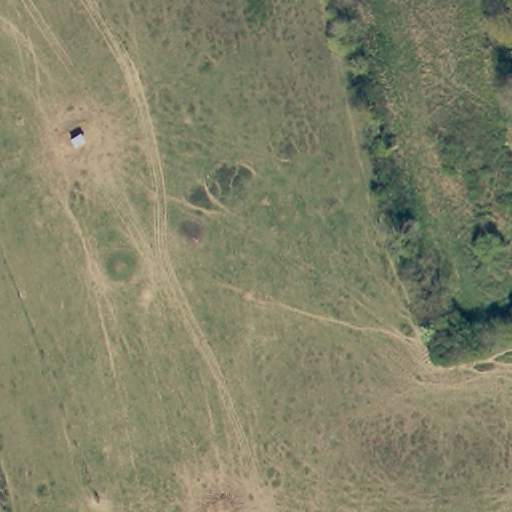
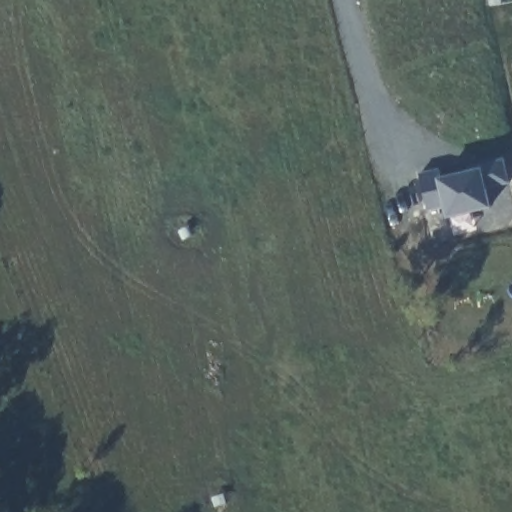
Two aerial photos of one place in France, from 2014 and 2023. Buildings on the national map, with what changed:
new [(441,171),(443,181),(482,171),(481,166),(505,160),(511,183),(488,189),(492,207),(451,217),(449,208),(431,212),(422,176),(441,171)]

